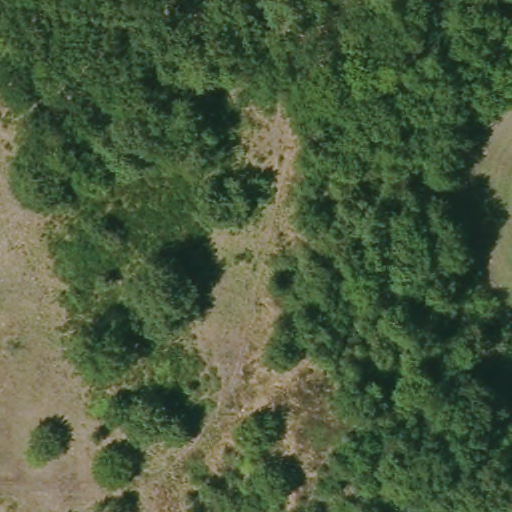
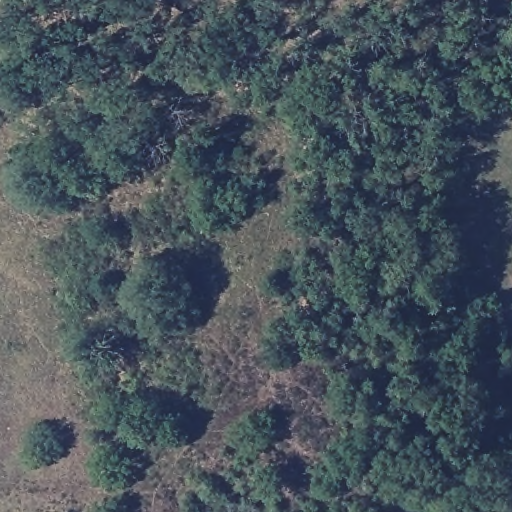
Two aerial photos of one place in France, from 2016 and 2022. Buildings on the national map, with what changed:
[]

